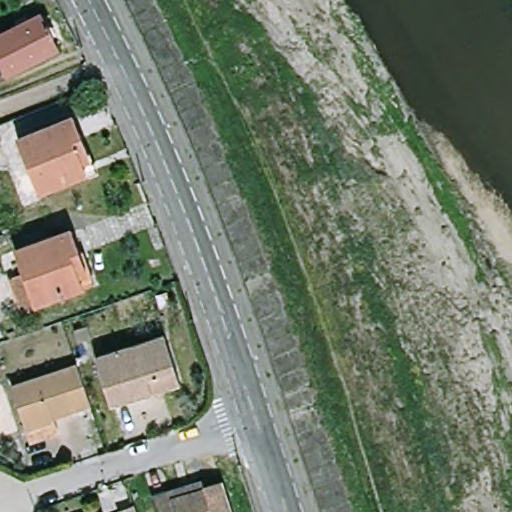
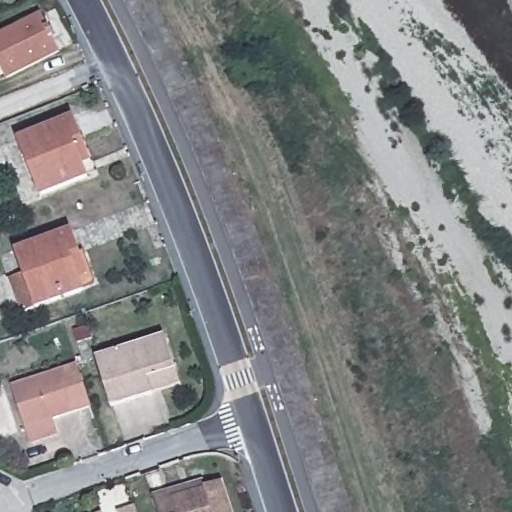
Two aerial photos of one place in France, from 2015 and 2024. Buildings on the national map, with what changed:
unchanged [(51,15),(70,51),(16,78),(0,82),(0,40),(51,15)]
unchanged [(86,176),(41,194),(20,139),(72,117),(81,139),(95,173),(86,176)]
unchanged [(13,278),(28,272),(20,252),(74,231),(82,252),(95,285),(87,288),(41,306),(26,312),(13,278)]
unchanged [(155,391),(115,405),(99,357),(167,334),(179,367),(183,381),(155,391)]
unchanged [(34,439),(28,423),(15,383),(80,360),(95,400),(58,412),(63,428),(34,439)]
unchanged [(157,501),(175,495),(177,502),(210,491),(210,489),(226,483),(236,512),(161,512),(157,501)]
unchanged [(121,508),(140,502),(144,512),(122,512),(121,508)]
unchanged [(106,511),(106,512),(103,512),(106,511)]

